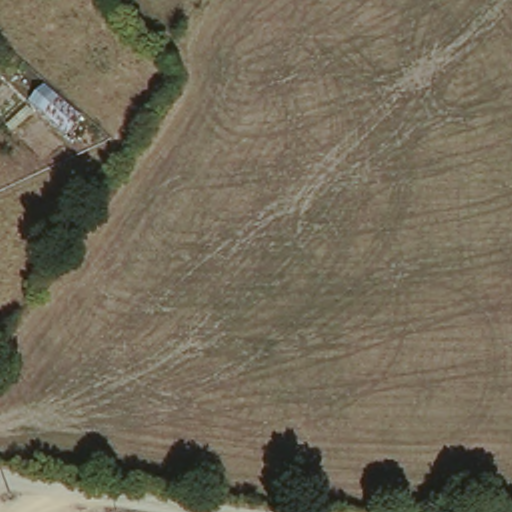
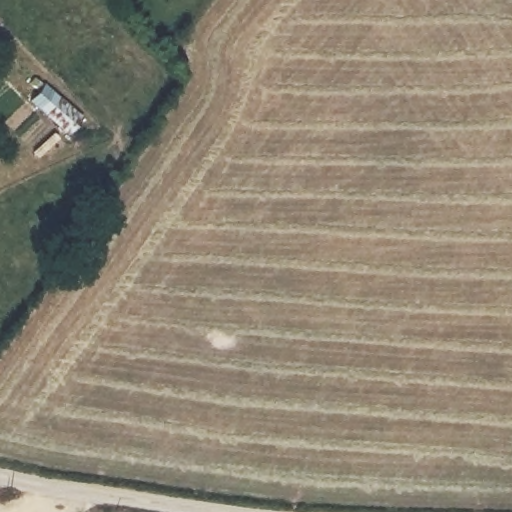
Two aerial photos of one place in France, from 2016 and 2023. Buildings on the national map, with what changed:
unchanged [(66,126),(43,105),(59,88),(82,109),(66,126)]

